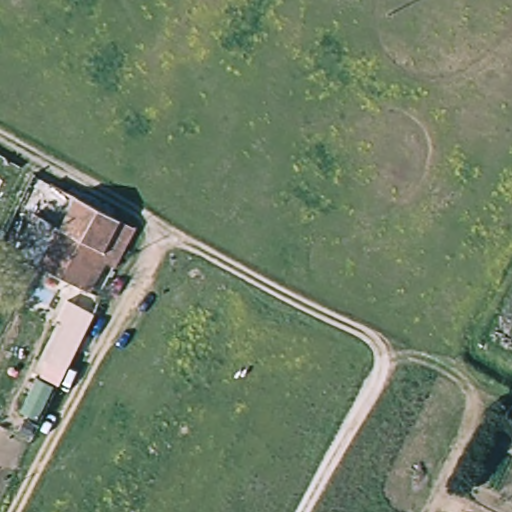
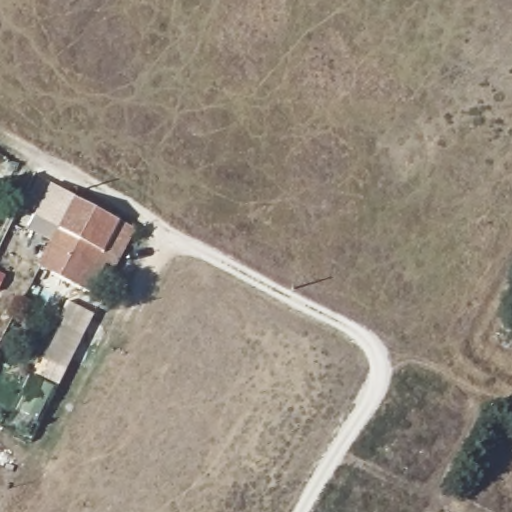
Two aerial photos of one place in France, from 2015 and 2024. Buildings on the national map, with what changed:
unchanged [(60,233),(41,269),(35,281),(15,270),(8,267),(35,217),(60,230),(62,225),(52,220),(65,196),(75,201),(120,225),(105,256),(60,233)]
unchanged [(60,233),(105,256),(120,225),(134,233),(115,270),(105,264),(90,296),(41,269),(60,233)]
unchanged [(90,319),(58,382),(46,376),(49,368),(39,363),(46,350),(40,347),(55,316),(61,304),(90,319)]

